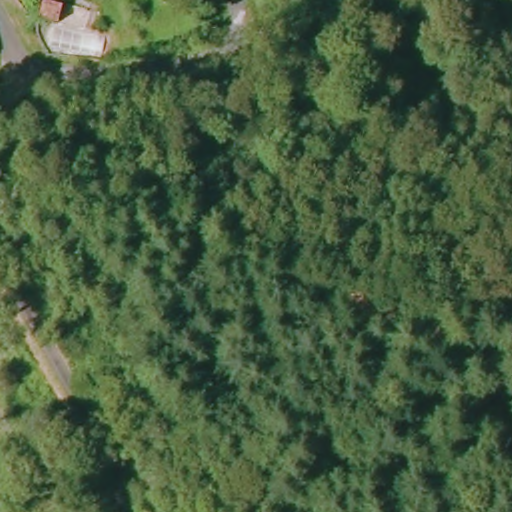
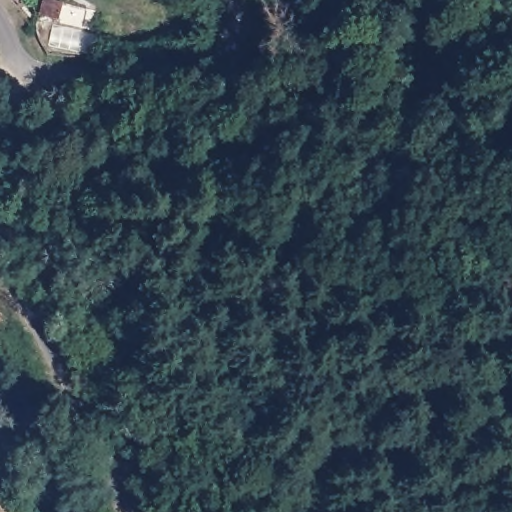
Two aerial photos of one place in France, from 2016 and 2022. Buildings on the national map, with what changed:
unchanged [(58,20),(41,15),(44,0),(59,0),(61,0),(58,20)]

